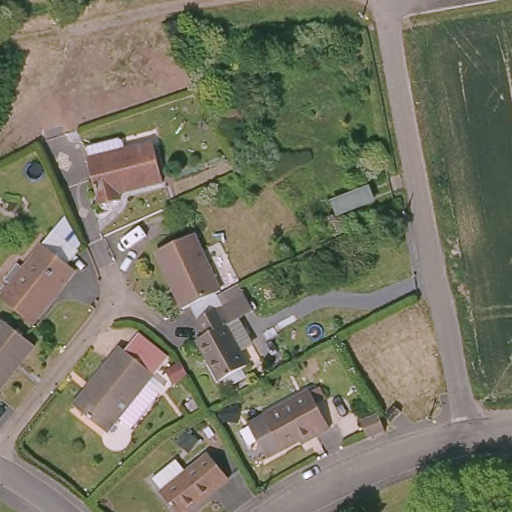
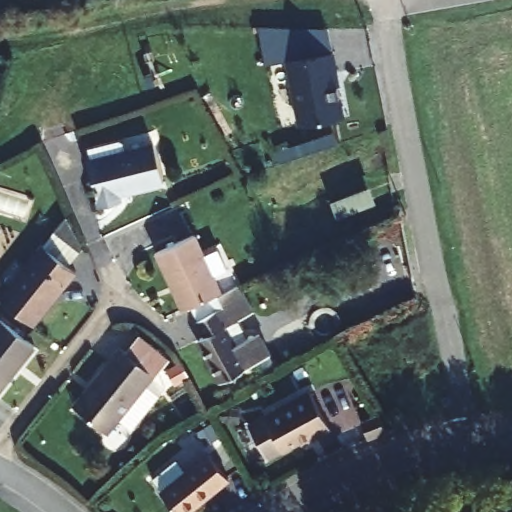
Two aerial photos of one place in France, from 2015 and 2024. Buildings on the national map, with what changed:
new [(262,69),(255,30),(286,31),(292,62),(285,64),(285,65),(262,69)]
new [(326,32),(330,55),(292,62),(286,31),(326,32)]
new [(330,55),(336,89),(335,90),(340,121),(296,130),(285,64),(330,55)]
unchanged [(161,188),(113,199),(115,207),(96,210),(86,166),(153,153),(161,188)]
unchanged [(354,186),(357,185),(363,198),(362,199),(331,214),(325,200),(354,186)]
unchanged [(41,240),(80,269),(35,326),(0,303),(0,293),(41,240)]
unchanged [(173,315),(147,258),(186,240),(212,296),(173,315)]
unchanged [(242,282),(258,314),(223,331),(243,373),(211,388),(198,357),(201,356),(195,341),(201,338),(195,325),(220,313),(212,296),(242,282)]
unchanged [(0,387),(0,321),(31,345),(0,387)]
unchanged [(117,431),(113,441),(83,417),(95,396),(93,393),(118,354),(153,380),(117,431)]
unchanged [(329,437),(315,444),(312,440),(266,465),(247,430),(308,400),(329,437)]
unchanged [(372,427),(360,431),(350,414),(364,408),(372,427)]
unchanged [(231,480),(217,490),(215,487),(202,496),(205,500),(189,512),(177,512),(156,478),(181,458),(190,470),(211,455),(231,480)]

